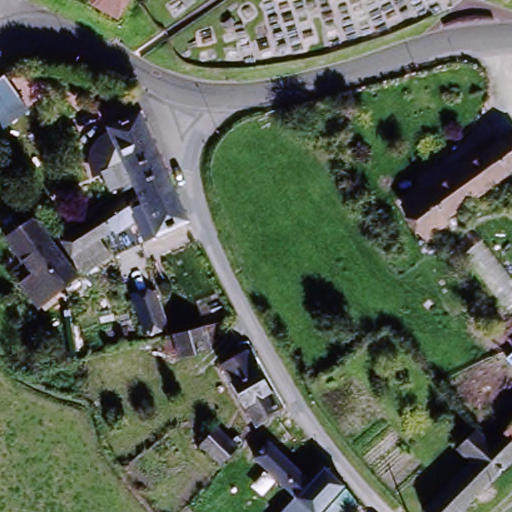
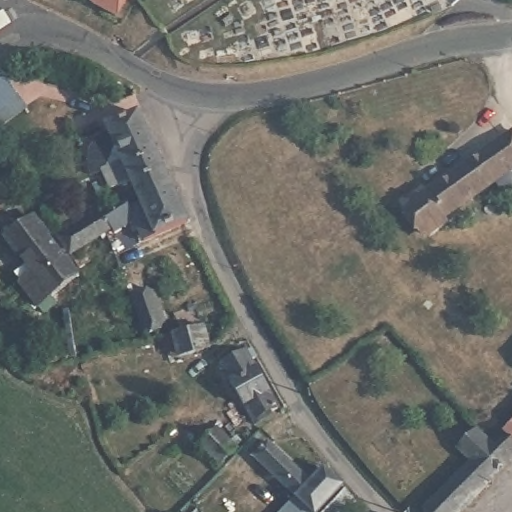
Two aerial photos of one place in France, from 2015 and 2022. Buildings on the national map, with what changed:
unchanged [(121,26),(96,14),(92,0),(134,0),(121,26)]
unchanged [(29,109),(0,129),(0,77),(4,75),(29,109)]
unchanged [(154,245),(140,214),(129,190),(107,199),(98,180),(120,170),(104,134),(133,121),(170,200),(185,232),(154,245)]
unchanged [(402,211),(421,195),(426,201),(501,146),(512,160),(512,173),(426,240),(402,211)]
unchanged [(126,206),(129,214),(137,231),(111,243),(108,237),(66,256),(56,238),(126,206)]
unchanged [(0,244),(0,242),(30,219),(44,236),(76,278),(87,292),(82,295),(67,307),(57,294),(48,282),(37,291),(17,267),(0,244)]
unchanged [(155,296),(160,321),(142,325),(137,304),(136,300),(155,296)]
unchanged [(210,333),(216,357),(180,366),(177,358),(172,359),(169,345),(210,333)]
unchanged [(254,358),(259,367),(252,370),(276,418),(269,421),(272,426),(252,436),(221,373),(254,358)]
unchanged [(472,467),(467,461),(459,450),(469,437),(475,431),(494,451),(504,441),(500,437),(508,429),(512,425),(512,465),(466,512),(426,512),(447,491),(472,467)]
unchanged [(220,436),(241,453),(227,470),(205,452),(220,436)]
unchanged [(253,469),(272,451),(313,492),(325,479),(344,495),(328,512),(293,512),(297,508),(253,469)]
unchanged [(359,505),(352,512),(334,512),(350,494),(359,505)]

